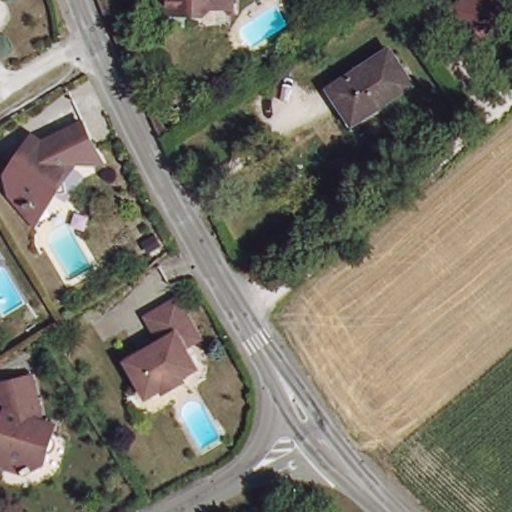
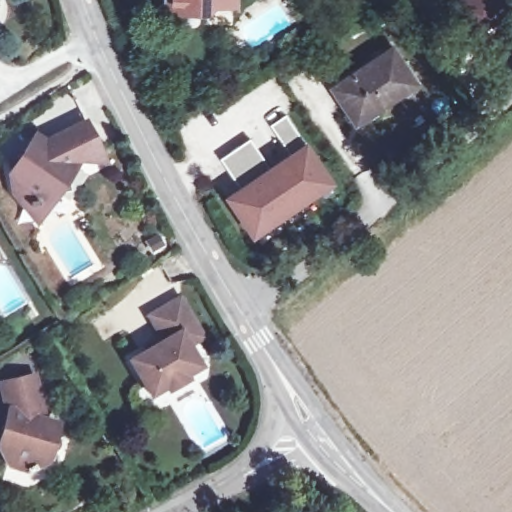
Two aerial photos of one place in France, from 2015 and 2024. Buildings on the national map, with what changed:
unchanged [(241,7),(164,14),(165,0),(241,0),(241,7)]
unchanged [(476,40),(455,8),(468,0),(496,0),(508,18),(476,40)]
unchanged [(346,113),(352,110),(338,86),(396,48),(418,82),(388,102),(391,106),(357,129),(346,113)]
new [(250,139),(268,165),(287,153),(270,125),(285,115),(304,142),(306,141),(333,183),(251,238),(223,196),(238,187),(220,159),(250,139)]
unchanged [(36,209),(35,205),(21,195),(13,165),(27,161),(40,144),(48,150),(57,140),(91,123),(107,154),(113,165),(81,168),(58,202),(45,204),(45,207),(44,222),(36,209)]
unchanged [(126,368),(160,347),(145,323),(176,305),(200,345),(186,353),(198,372),(181,382),(184,385),(165,398),(162,394),(148,403),(126,368)]
unchanged [(40,421),(53,423),(47,455),(35,462),(35,464),(24,471),(22,468),(7,462),(0,450),(0,419),(3,408),(0,390),(0,380),(31,375),(40,421)]

